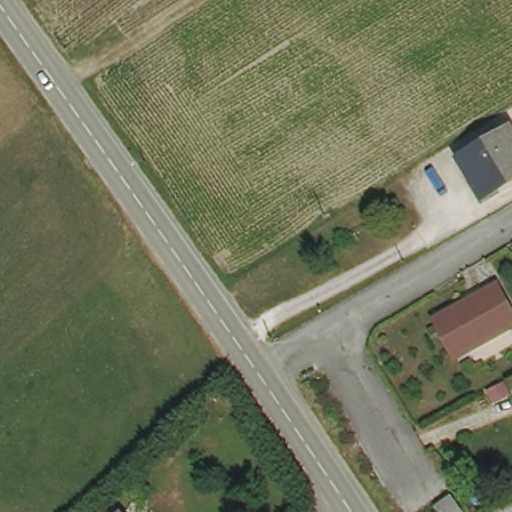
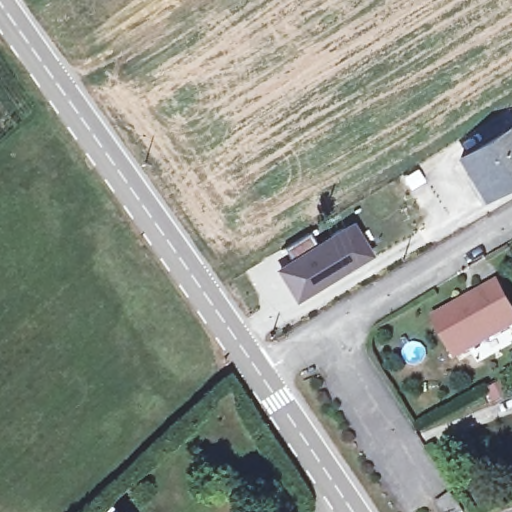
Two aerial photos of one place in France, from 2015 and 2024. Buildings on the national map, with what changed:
unchanged [(484,193),(463,155),(512,126),(512,176),(484,193)]
new [(299,265),(290,252),(314,237),(323,249),(356,228),(371,252),(357,261),(359,264),(346,273),(345,271),(334,278),(336,280),(304,301),(286,274),(299,265)]
unchanged [(459,350),(437,311),(499,276),(512,299),(512,321),(459,350)]
unchanged [(462,512),(444,512),(438,504),(450,495),(462,512)]
unchanged [(125,512),(124,512),(124,511),(125,512)]

